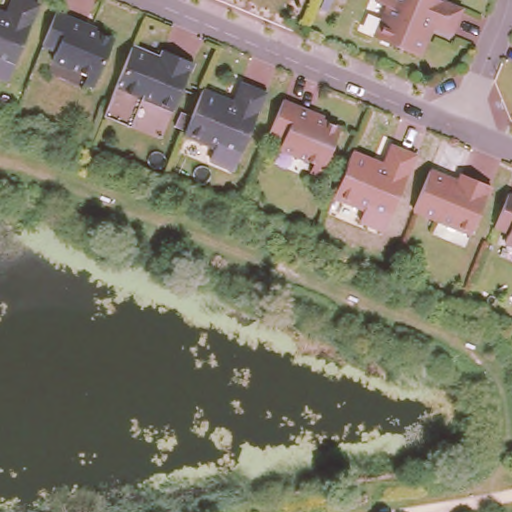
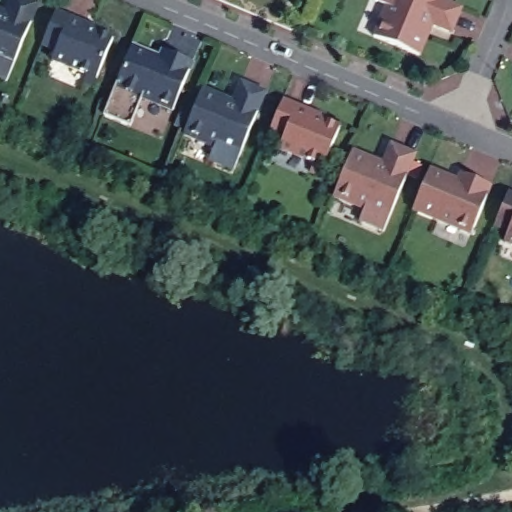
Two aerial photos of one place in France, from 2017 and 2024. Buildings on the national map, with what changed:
unchanged [(0,4),(5,6),(7,0),(37,0),(5,75),(0,73),(0,4)]
unchanged [(431,24),(418,55),(372,35),(385,4),(375,0),(443,0),(461,7),(450,32),(431,24)]
unchanged [(77,85),(81,74),(32,54),(50,10),(80,22),(91,27),(89,31),(107,39),(91,78),(86,88),(77,85)]
unchanged [(162,50),(191,61),(172,109),(114,85),(130,46),(158,58),(162,50)]
unchanged [(240,77),(265,86),(232,164),(207,154),(212,141),(182,129),(201,83),(232,96),(240,77)]
unchanged [(307,162),(273,149),(277,139),(263,132),(277,100),(306,111),(317,115),(315,120),(333,126),(316,166),(312,176),(303,172),(307,162)]
unchanged [(390,139),(415,149),(383,226),(357,215),(362,203),(332,190),(351,145),(382,157),(390,139)]
unchanged [(455,172),(485,184),(465,232),(407,209),(424,168),(451,179),(455,172)]
unchanged [(499,235),(502,226),(488,220),(502,186),(512,191),(512,241),(499,235)]

